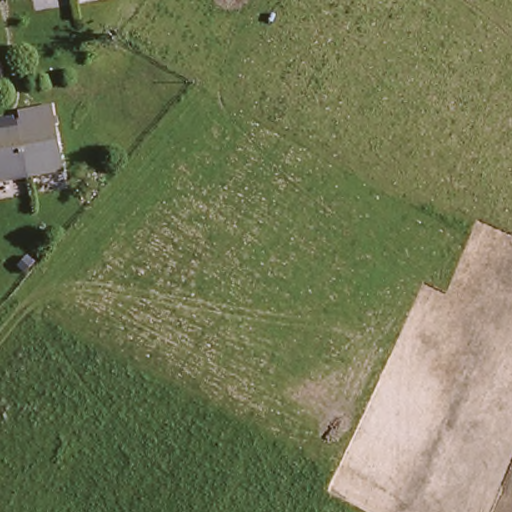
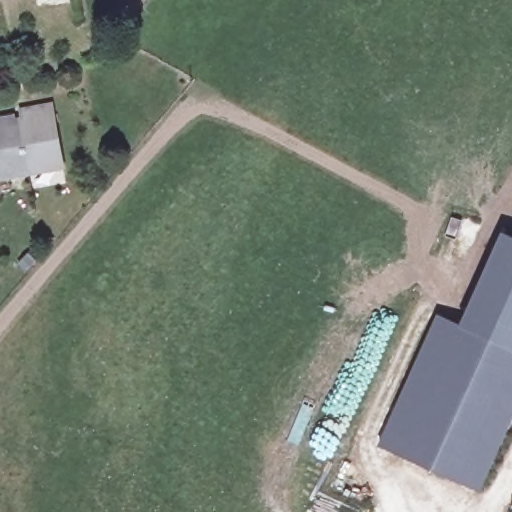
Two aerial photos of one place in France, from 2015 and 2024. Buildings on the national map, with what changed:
unchanged [(30,101),(55,96),(69,162),(2,178),(0,171),(0,127),(33,120),(30,101)]
new [(440,313),(512,346),(512,423),(482,488),(381,442),(440,313)]

